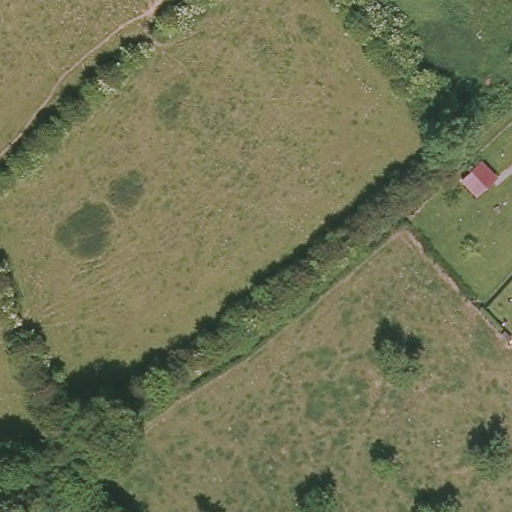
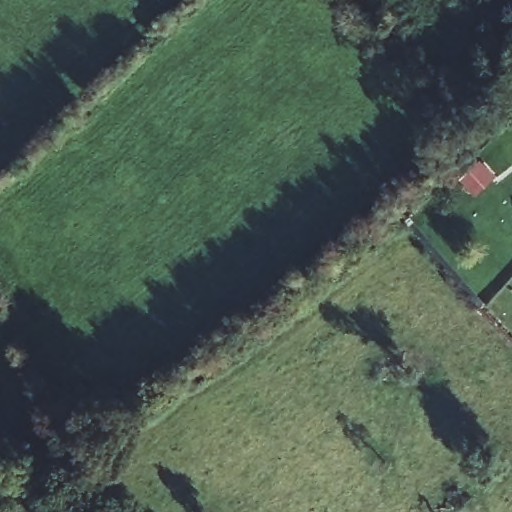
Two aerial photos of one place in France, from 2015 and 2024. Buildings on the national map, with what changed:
unchanged [(471,185),(489,168),(502,181),(484,199),(471,185)]

